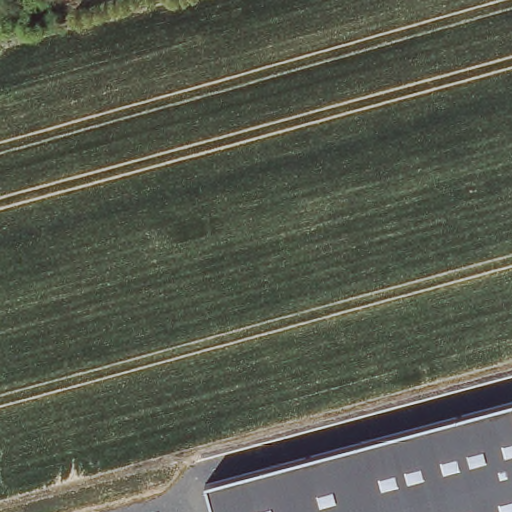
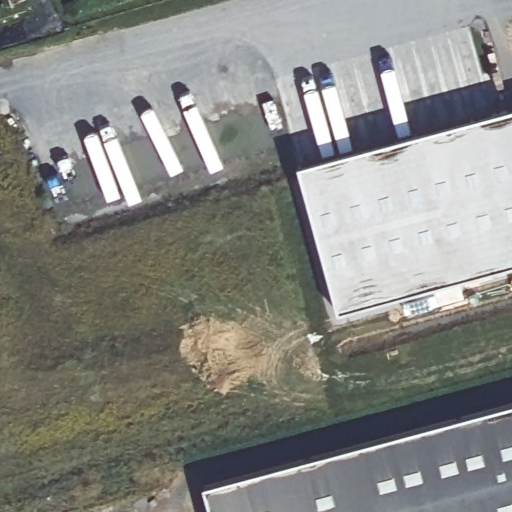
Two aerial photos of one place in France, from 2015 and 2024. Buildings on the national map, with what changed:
new [(512,121),(512,281),(336,335),(296,180),(512,121)]
unchanged [(203,485),(512,400),(512,512),(211,512),(203,485)]

